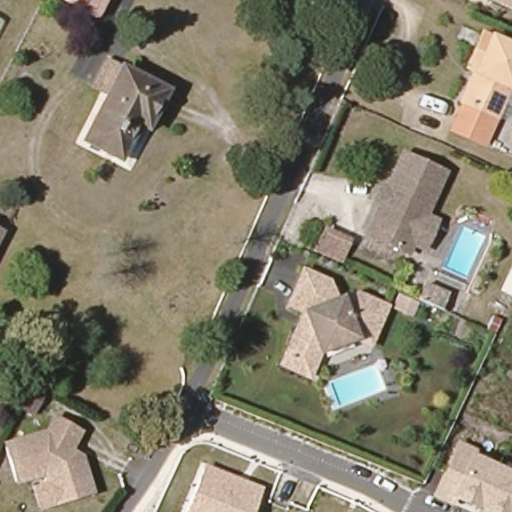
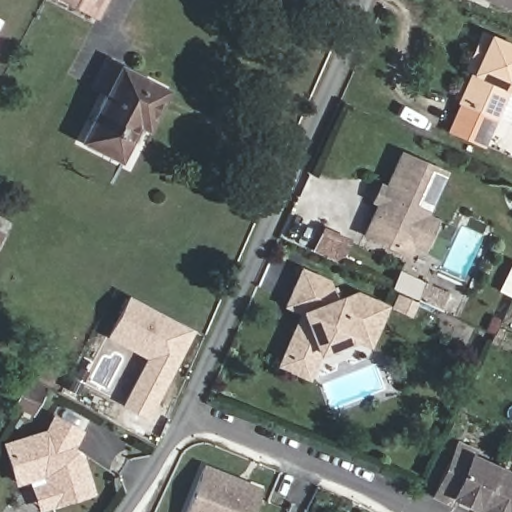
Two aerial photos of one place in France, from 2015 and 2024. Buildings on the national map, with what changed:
unchanged [(51,0),(108,0),(96,23),(51,0)]
unchanged [(498,0),(511,0),(509,5),(498,0)]
unchanged [(448,131),(453,120),(461,105),(458,104),(473,73),(466,70),(471,59),(482,36),(512,51),(512,79),(485,135),(479,147),(448,131)]
unchanged [(113,155),(81,138),(116,66),(160,89),(142,124),(124,160),(113,155)]
unchanged [(430,251),(416,245),(412,254),(374,234),(412,155),(451,175),(430,217),(442,224),(430,251)]
unchanged [(342,266),(318,254),(325,240),(349,251),(342,266)]
unchanged [(277,355),(283,343),(294,321),(303,303),(287,295),(304,261),(328,274),(334,292),(339,290),(339,293),(357,288),(384,302),(366,338),(352,331),(316,343),(309,356),(304,368),(277,355)]
unchanged [(446,293),(439,310),(434,307),(416,299),(424,283),(446,293)]
unchanged [(502,315),(512,294),(512,320),(502,315)]
new [(146,357),(108,335),(130,297),(193,331),(146,417),(121,403),(146,357)]
new [(31,411),(30,414),(14,406),(28,378),(48,388),(35,412),(31,411)]
unchanged [(28,480),(11,485),(0,443),(0,441),(40,429),(51,411),(82,430),(74,447),(85,452),(91,495),(44,512),(39,512),(28,480)]
unchanged [(454,500),(450,506),(430,497),(459,440),(480,450),(476,455),(512,472),(512,512),(480,512),(454,500)]
unchanged [(206,469),(241,482),(239,487),(257,495),(251,512),(188,512),(206,469)]

